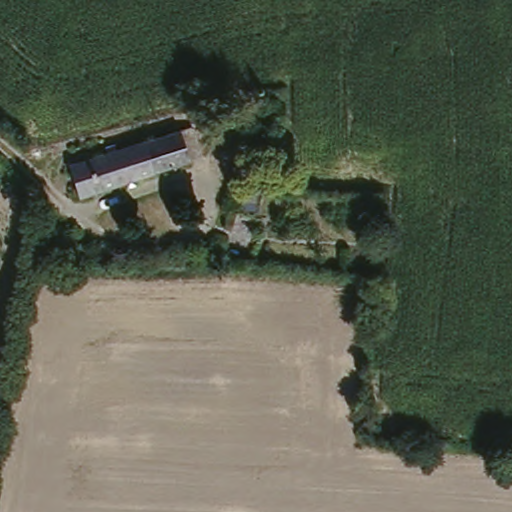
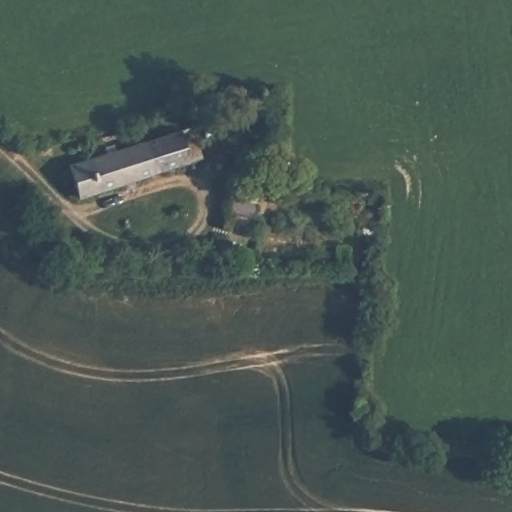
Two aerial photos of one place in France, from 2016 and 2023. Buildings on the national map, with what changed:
unchanged [(207,165),(94,198),(85,165),(139,149),(196,131),(207,165)]
unchanged [(230,203),(236,177),(269,185),(262,213),(230,203)]

